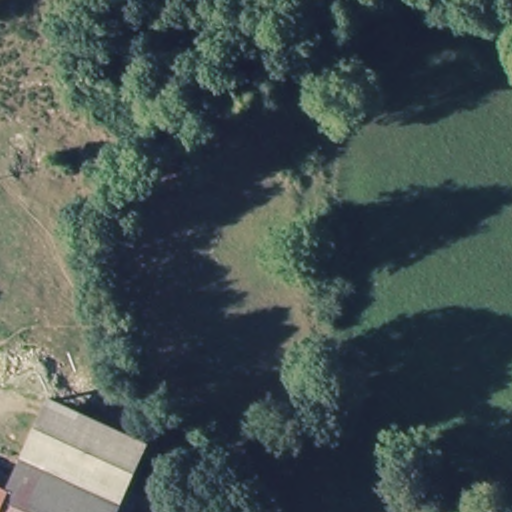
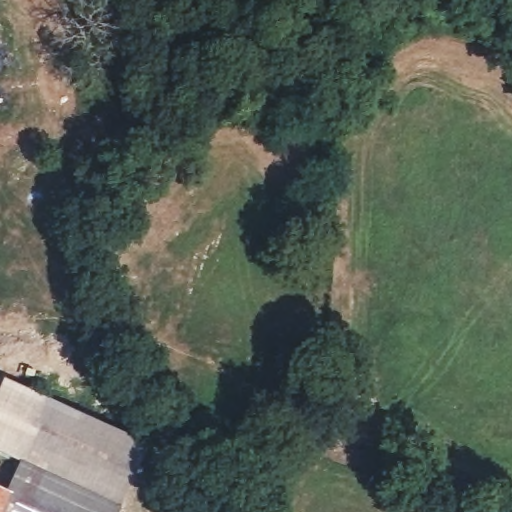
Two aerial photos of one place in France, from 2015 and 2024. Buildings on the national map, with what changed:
new [(46,395),(17,461),(0,453),(0,392),(7,378),(46,395)]
unchanged [(114,512),(20,512),(26,495),(2,491),(17,461),(46,395),(146,438),(121,495),(117,503),(114,512)]
unchanged [(2,491),(0,499),(0,490),(2,491)]
unchanged [(2,491),(26,495),(20,512),(0,512),(0,499),(2,491)]

